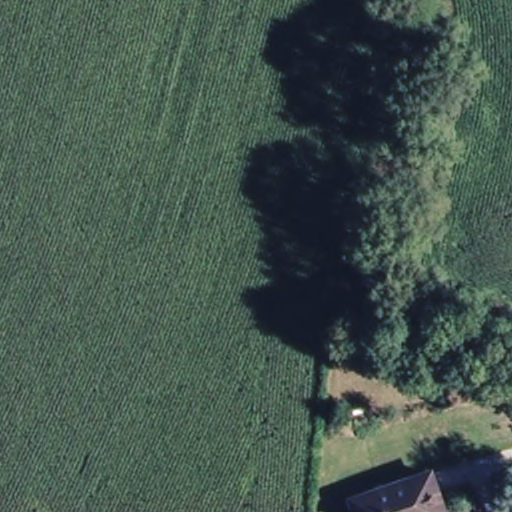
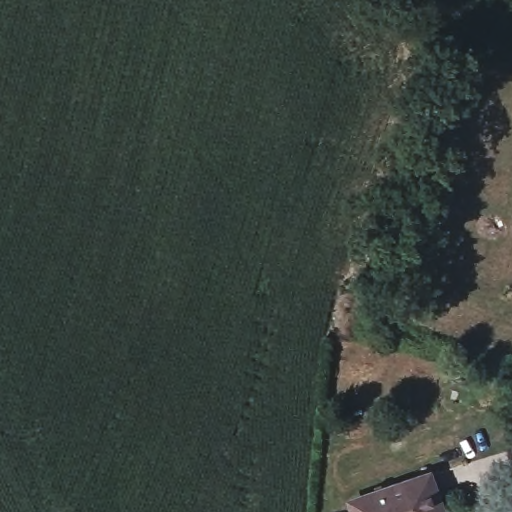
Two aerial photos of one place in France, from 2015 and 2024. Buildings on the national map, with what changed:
unchanged [(429,471),(444,512),(356,512),(352,498),(429,471)]

